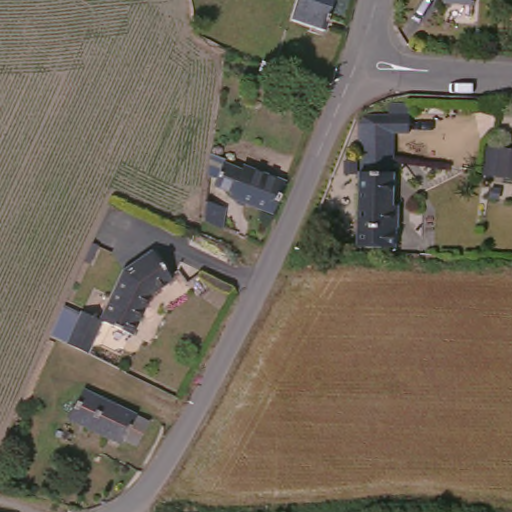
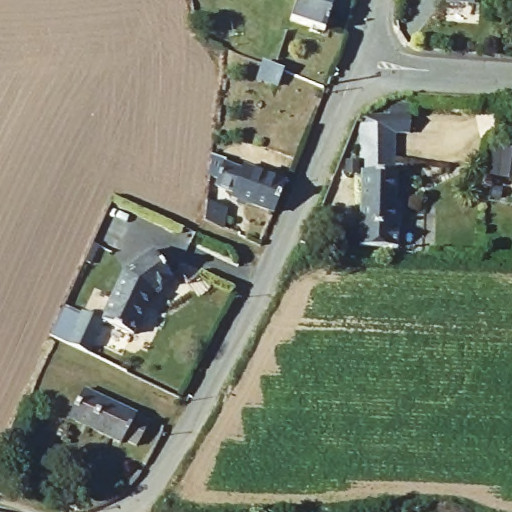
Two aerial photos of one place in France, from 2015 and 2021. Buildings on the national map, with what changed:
unchanged [(298,4),(290,0),(335,0),(321,34),(289,22),(298,4)]
unchanged [(469,0),(468,9),(441,5),(441,0),(469,0)]
unchanged [(274,88),(257,80),(264,63),(283,70),(274,88)]
unchanged [(390,228),(392,249),(352,252),(351,231),(347,135),(361,121),(379,119),(381,106),(393,106),(395,106),(397,106),(398,135),(384,136),(384,177),(387,177),(387,210),(387,213),(394,213),(393,228),(390,228)]
unchanged [(496,149),(512,151),(512,180),(492,179),(496,149)]
unchanged [(224,195),(226,189),(211,182),(213,177),(201,172),(201,170),(203,153),(220,161),(218,166),(233,174),(238,166),(280,184),(267,214),(224,195)]
unchanged [(226,209),(220,229),(201,220),(202,203),(226,209)]
unchanged [(115,342),(94,328),(78,356),(59,344),(77,314),(89,322),(105,281),(137,255),(158,284),(134,304),(115,342)]
unchanged [(139,426),(126,448),(113,440),(110,446),(62,418),(77,391),(139,426)]

